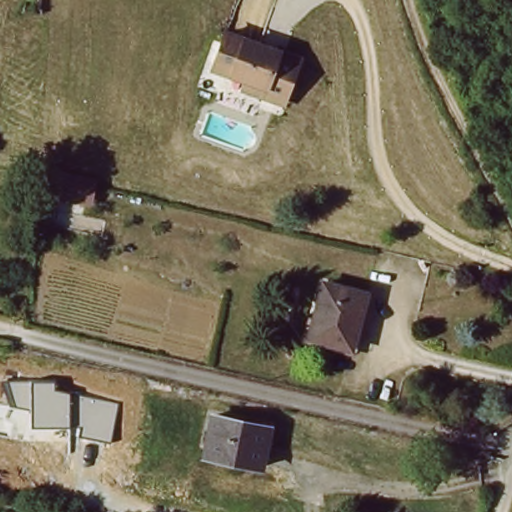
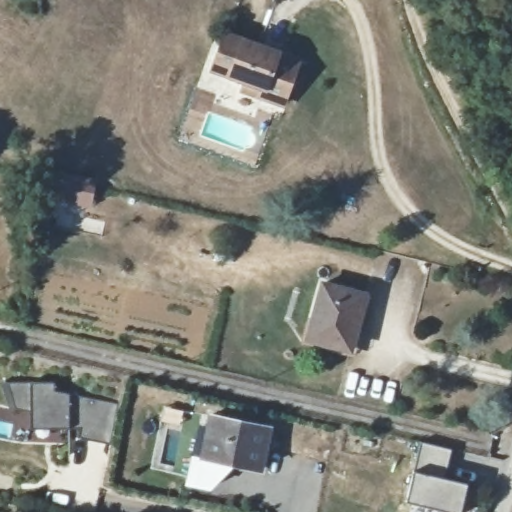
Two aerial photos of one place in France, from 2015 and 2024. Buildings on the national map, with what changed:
unchanged [(248,79),(215,66),(218,56),(228,30),(302,59),(283,104),(259,94),(245,89),(248,79)]
unchanged [(42,172),(81,182),(72,203),(41,194),(42,172)]
unchanged [(309,341),(324,284),(366,296),(352,352),(309,341)]
unchanged [(80,438),(81,428),(69,428),(32,429),(31,412),(9,409),(3,384),(33,384),(57,385),(56,391),(119,405),(111,445),(80,438)]
unchanged [(211,445),(217,414),(273,429),(264,468),(236,461),(209,454),(211,445)]
new [(451,449),(445,478),(467,483),(460,512),(453,512),(407,501),(421,442),(451,449)]

